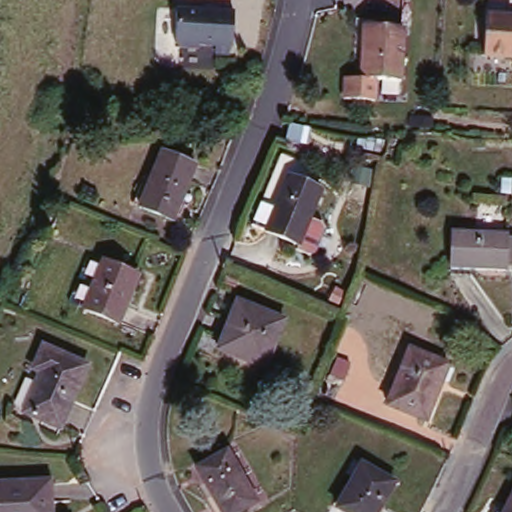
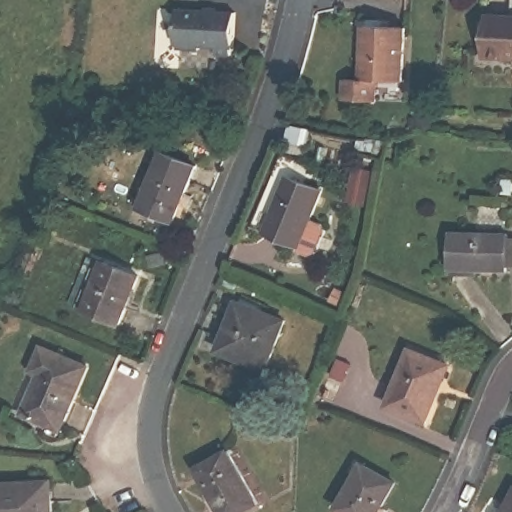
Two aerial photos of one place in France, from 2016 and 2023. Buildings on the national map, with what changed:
unchanged [(239,9),(237,44),(235,44),(235,51),(220,50),(221,44),(204,42),(204,46),(182,46),(182,42),(180,41),(182,6),(239,9)]
unchanged [(512,12),(512,54),(484,52),(486,11),(509,12),(512,12)]
unchanged [(403,25),(401,79),(361,76),(363,22),(403,25)]
unchanged [(311,135),(288,135),(288,120),(311,120),(311,135)]
unchanged [(174,221),(141,209),(164,153),(197,166),(174,221)]
unchanged [(297,247),(262,232),(287,179),(321,194),(297,247)]
unchanged [(509,266),(509,272),(451,271),(451,232),(510,232),(510,239),(512,238),(512,266),(509,266)]
unchanged [(121,328),(88,315),(79,311),(100,262),(109,266),(141,279),(121,328)]
unchanged [(268,370),(223,350),(244,302),(290,321),(268,370)]
unchanged [(67,428),(31,414),(47,376),(37,371),(48,345),(94,365),(67,428)]
unchanged [(430,420),(391,406),(413,348),(449,362),(437,391),(441,392),(430,420)]
unchanged [(257,493),(232,512),(228,512),(196,466),(225,446),(257,493)]
unchanged [(381,512),(345,512),(339,508),(365,463),(397,482),(381,512)]
unchanged [(0,485),(44,482),(45,512),(0,512),(0,485)]
unchanged [(512,496),(512,512),(504,512),(512,496)]

